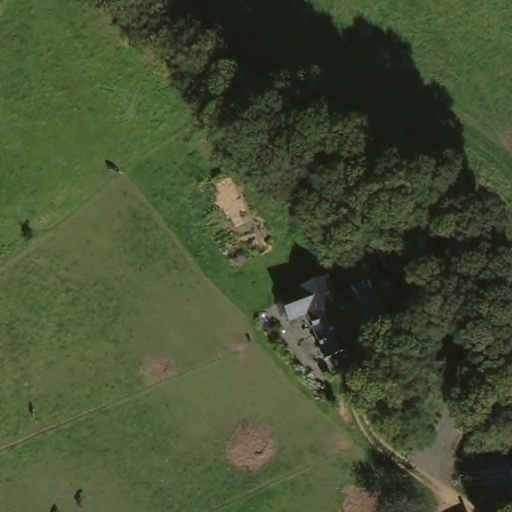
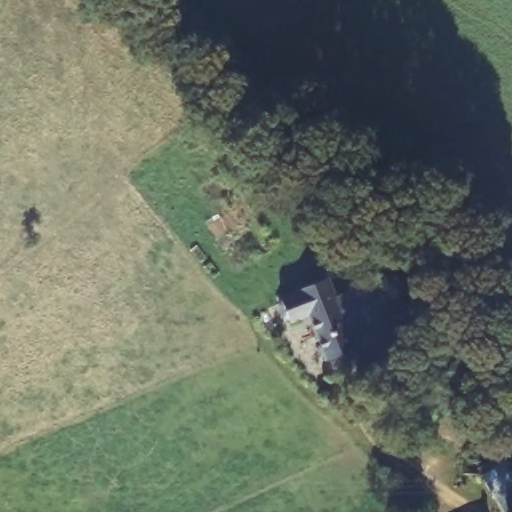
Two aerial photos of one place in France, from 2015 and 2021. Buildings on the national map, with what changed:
unchanged [(329,277),(340,320),(295,331),(282,291),(329,277)]

